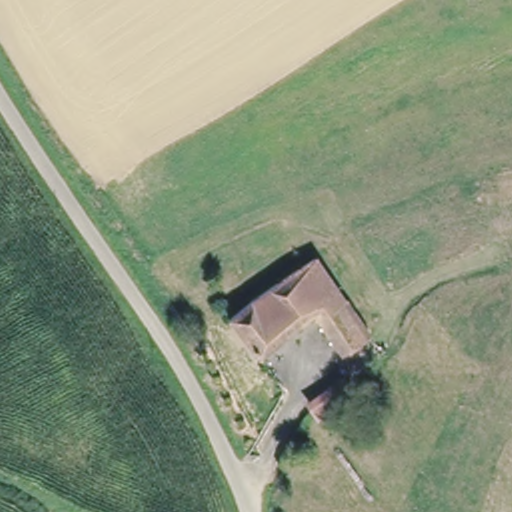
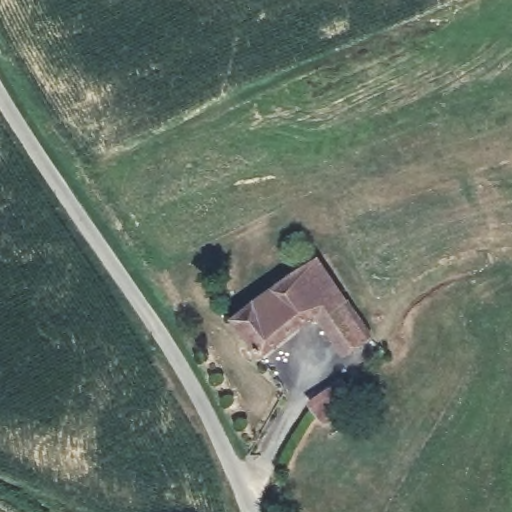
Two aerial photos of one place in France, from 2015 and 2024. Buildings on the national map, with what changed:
unchanged [(351,318),(359,314),(366,324),(358,329),(363,337),(337,351),(313,313),(256,352),(228,312),(311,257),(351,318)]
unchanged [(342,402),(327,412),(315,394),(328,383),(342,402)]

